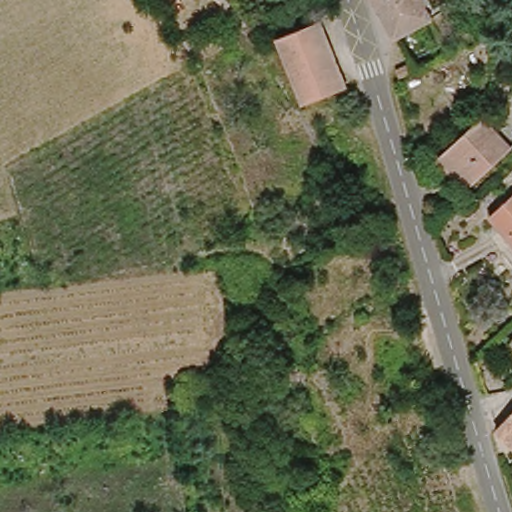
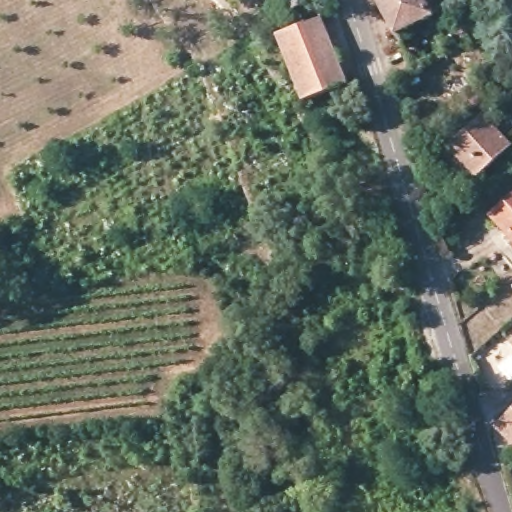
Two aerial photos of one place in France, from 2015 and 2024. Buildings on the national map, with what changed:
unchanged [(380,0),(439,0),(444,0),(447,5),(416,19),(422,30),(408,36),(402,25),(396,29),(380,0)]
unchanged [(290,37),(300,32),(315,26),(342,91),(302,109),(281,55),(277,43),(290,37)]
unchanged [(512,142),(470,182),(439,150),(481,110),(512,138),(512,142)]
unchanged [(512,197),(512,237),(492,216),(512,197)]
unchanged [(512,349),(510,348),(512,346),(512,349)]
unchanged [(512,412),(512,437),(498,425),(512,412)]

